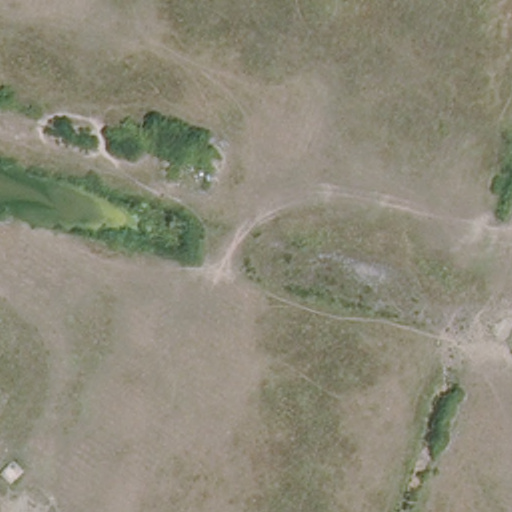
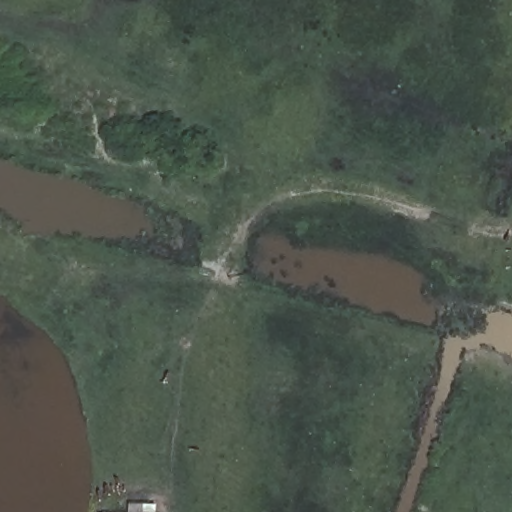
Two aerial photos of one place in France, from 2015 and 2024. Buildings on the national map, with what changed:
unchanged [(30,474),(15,488),(4,475),(17,461),(30,474)]

